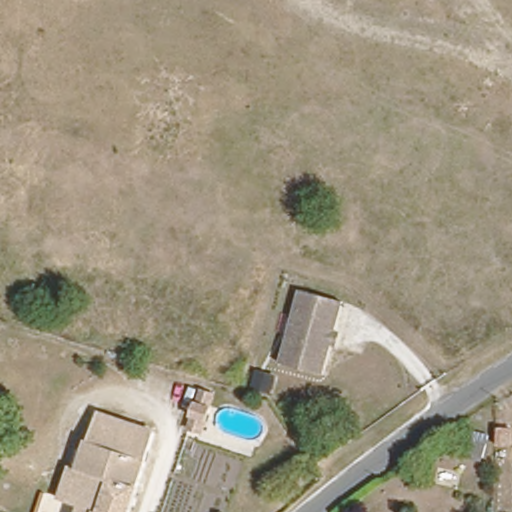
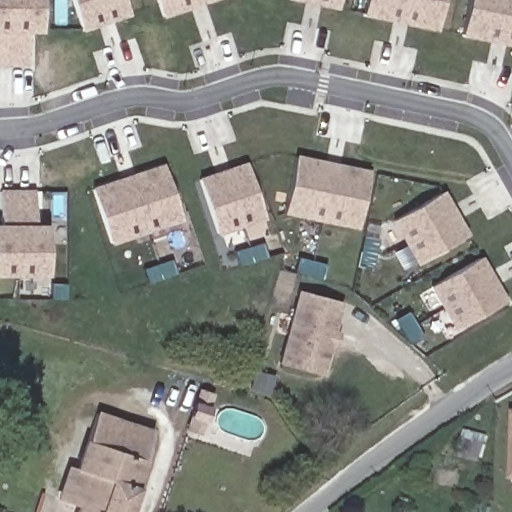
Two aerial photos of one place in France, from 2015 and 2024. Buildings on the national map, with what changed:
new [(28,29),(28,63),(0,63),(0,0),(40,0),(40,29),(28,29)]
new [(72,0),(125,0),(130,13),(82,30),(72,0)]
new [(156,0),(209,0),(162,16),(156,0)]
new [(340,0),(339,9),(295,0),(340,0)]
new [(365,0),(444,0),(438,30),(363,14),(365,0)]
new [(468,0),(512,0),(512,46),(461,35),(468,0)]
new [(358,226),(284,211),(296,156),(370,171),(358,226)]
new [(217,233),(200,179),(248,163),(265,217),(217,233)]
new [(110,243),(92,189),(163,165),(182,219),(110,243)]
new [(47,274),(0,274),(0,225),(1,225),(0,191),(35,191),(35,225),(47,225),(47,274)]
new [(395,218),(442,191),(467,235),(420,262),(395,218)]
new [(433,285),(480,257),(505,300),(457,328),(433,285)]
unchanged [(344,306),(325,379),(282,368),(301,295),(344,306)]
unchanged [(215,414),(194,408),(200,390),(220,397),(215,414)]
unchanged [(45,496),(63,502),(73,471),(82,473),(109,393),(166,412),(134,512),(40,512),(45,496)]
demolished [(487,443),(482,467),(455,460),(460,437),(487,443)]
new [(512,449),(512,478),(511,478),(512,449)]

